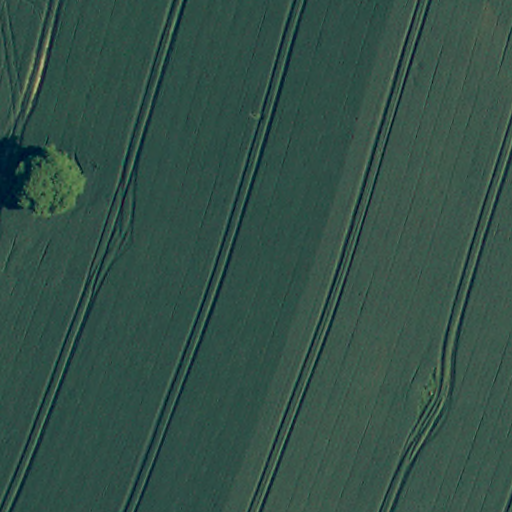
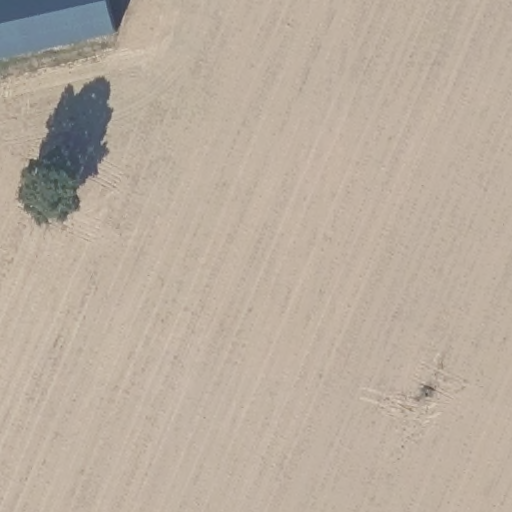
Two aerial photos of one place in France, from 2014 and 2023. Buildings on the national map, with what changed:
new [(0,60),(0,0),(110,0),(117,34),(0,60)]

